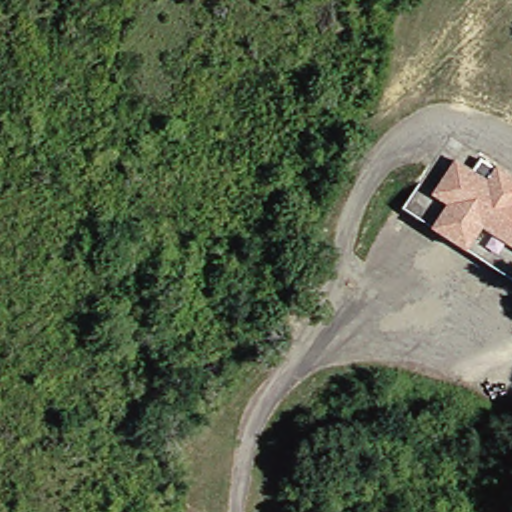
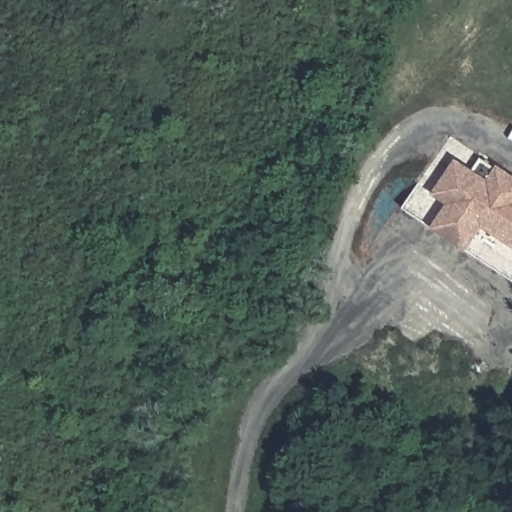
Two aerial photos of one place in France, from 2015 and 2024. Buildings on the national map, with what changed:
unchanged [(465,170),(474,159),(488,168),(490,167),(512,180),(512,253),(475,230),(460,252),(422,228),(439,205),(423,195),(448,160),(465,170)]

